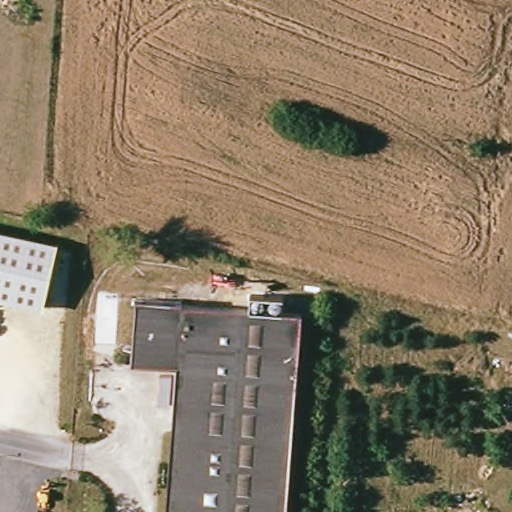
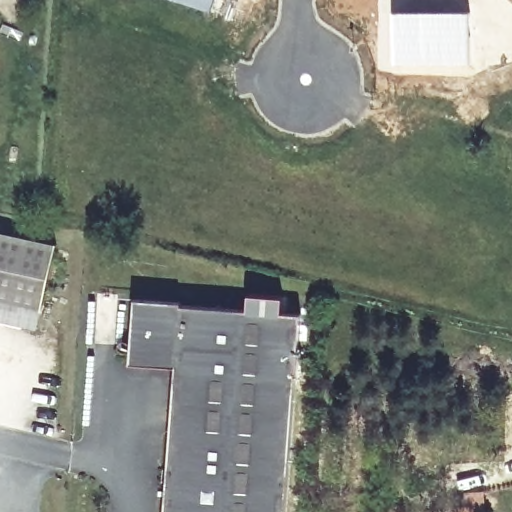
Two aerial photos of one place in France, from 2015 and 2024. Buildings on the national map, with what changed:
new [(214,12),(179,0),(218,0),(214,12)]
new [(469,10),(469,62),(392,63),(389,10),(469,10)]
unchanged [(58,243),(43,311),(0,301),(0,231),(58,243)]
unchanged [(131,364),(136,292),(181,295),(180,301),(301,309),(288,512),(165,512),(175,368),(131,364)]

